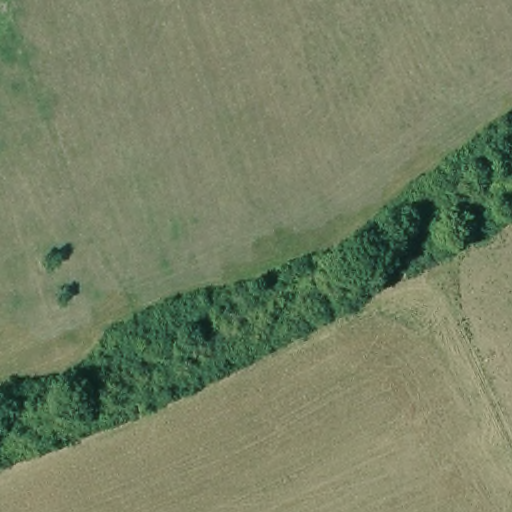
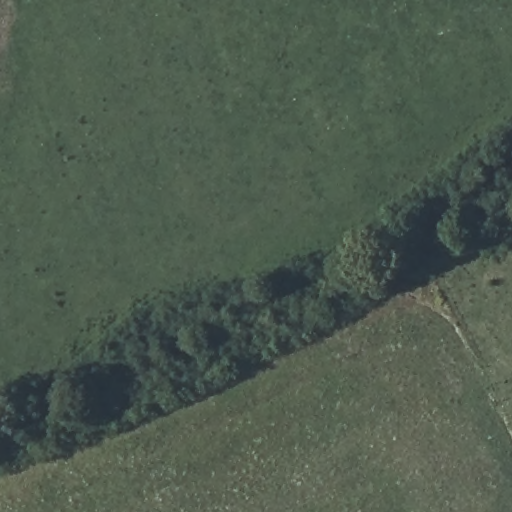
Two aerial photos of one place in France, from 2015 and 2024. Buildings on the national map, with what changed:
[]

